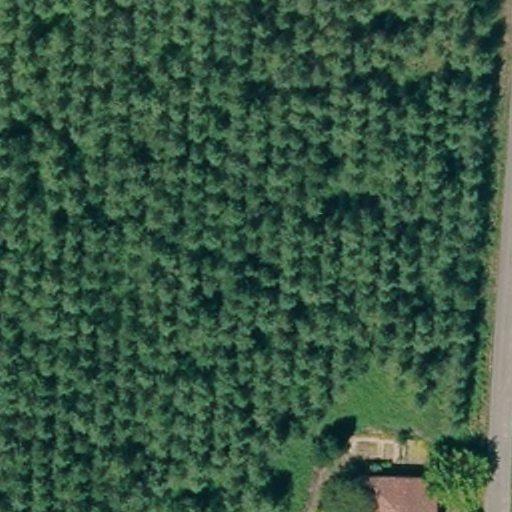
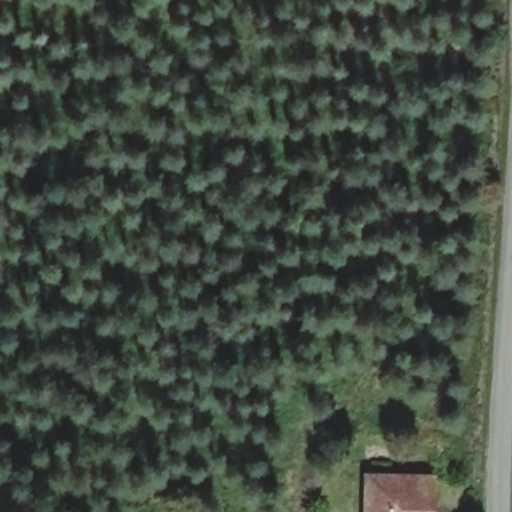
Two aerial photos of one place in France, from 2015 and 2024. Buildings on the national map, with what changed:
unchanged [(435,482),(434,512),(370,512),(370,483),(435,482)]

